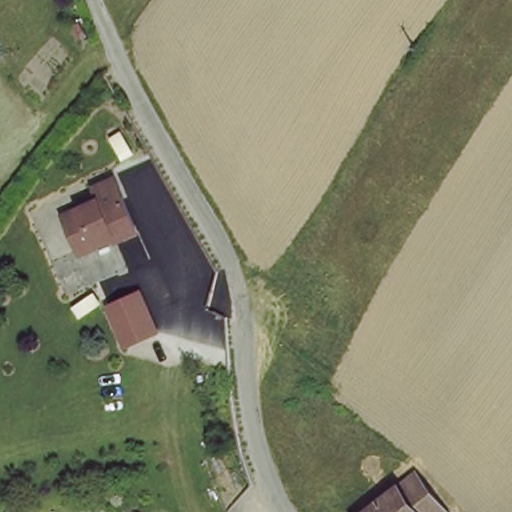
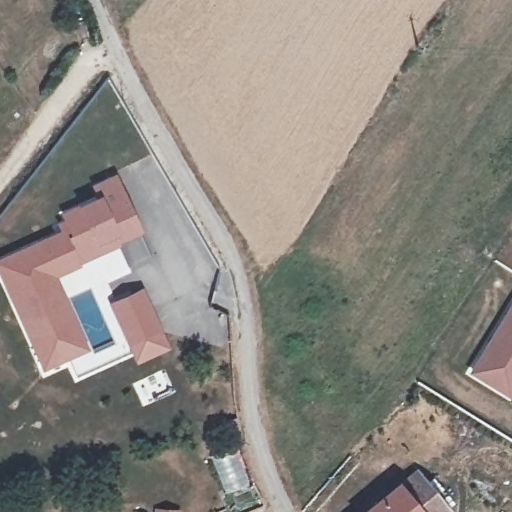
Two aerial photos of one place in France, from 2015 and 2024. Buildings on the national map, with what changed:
unchanged [(78,245),(65,212),(75,207),(102,197),(106,204),(124,197),(138,233),(116,242),(82,255),(81,252),(78,245)]
new [(41,370),(0,279),(0,258),(59,231),(57,224),(68,220),(75,237),(69,241),(79,266),(55,278),(88,350),(41,370)]
unchanged [(137,288),(150,328),(120,338),(107,298),(137,288)]
new [(475,370),(497,334),(512,310),(512,390),(510,392),(475,370)]
unchanged [(439,512),(374,512),(414,480),(439,512)]

